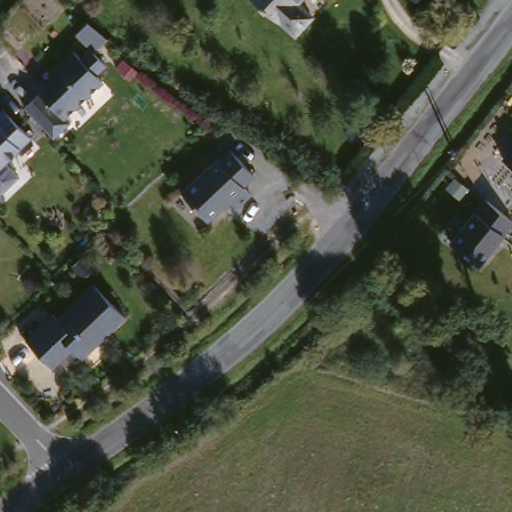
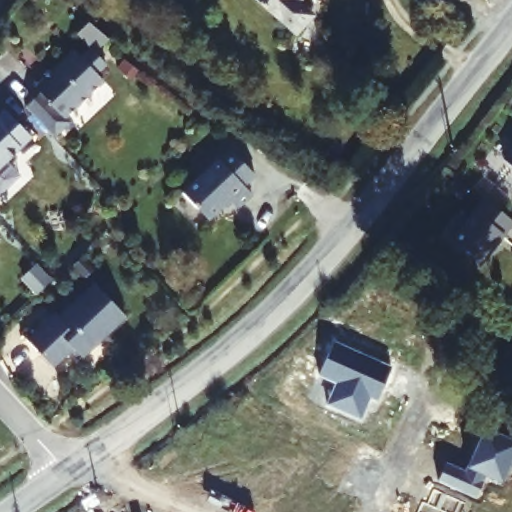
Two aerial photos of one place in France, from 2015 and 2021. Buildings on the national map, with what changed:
unchanged [(298,28),(281,14),(278,17),(258,0),(301,0),(313,10),(298,28)]
unchanged [(105,79),(45,133),(16,98),(75,40),(105,79)]
unchanged [(0,160),(0,116),(11,129),(22,141),(0,160)]
unchanged [(250,179),(239,190),(247,199),(233,212),(225,203),(203,223),(177,195),(213,162),(214,164),(226,153),(250,179)]
unchanged [(9,179),(0,187),(0,168),(9,179)]
unchanged [(461,250),(496,207),(512,220),(512,247),(490,274),(461,250)]
unchanged [(63,353),(47,368),(22,340),(50,315),(54,319),(90,285),(121,318),(77,359),(72,363),(63,353)]
new [(335,341),(393,367),(378,401),(371,397),(361,419),(328,404),(338,383),(320,374),(335,341)]
new [(466,471),(486,428),(512,439),(512,465),(510,464),(503,482),(487,474),(476,498),(439,481),(447,463),(466,471)]
new [(423,502),(428,504),(435,489),(467,504),(463,512),(419,512),(423,502)]

